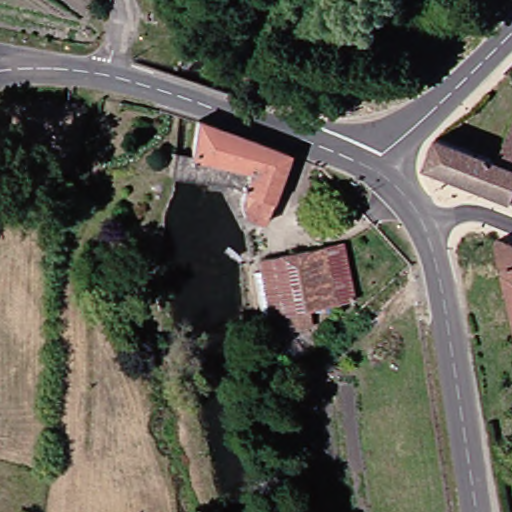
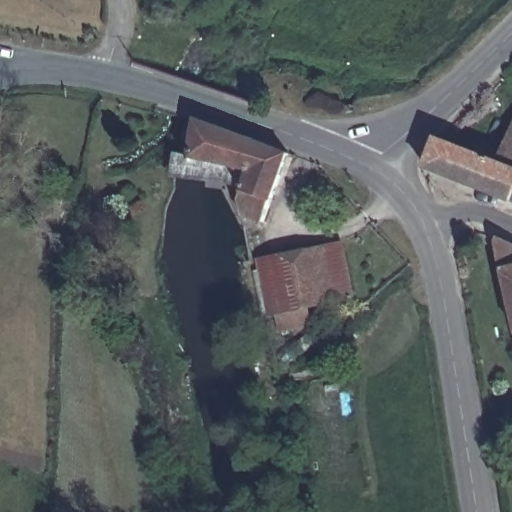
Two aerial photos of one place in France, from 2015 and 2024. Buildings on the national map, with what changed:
unchanged [(188,149),(190,121),(281,156),(256,221),(231,215),(229,188),(171,166),(171,146),(188,149)]
unchanged [(419,170),(431,140),(488,161),(498,139),(512,144),(512,186),(505,202),(419,170)]
unchanged [(505,202),(512,186),(512,207),(505,202)]
unchanged [(332,238),(343,293),(290,306),(292,321),(273,326),(271,311),(263,312),(254,257),(332,238)]
unchanged [(493,240),(512,245),(512,336),(509,337),(488,244),(493,240)]
unchanged [(512,336),(512,350),(509,337),(512,336)]
unchanged [(511,504),(512,503),(512,510),(511,504)]

